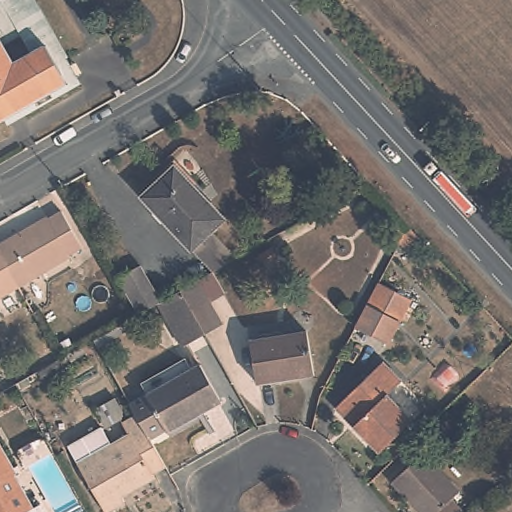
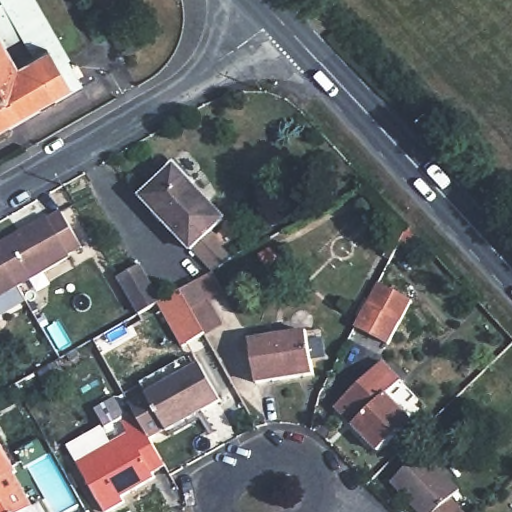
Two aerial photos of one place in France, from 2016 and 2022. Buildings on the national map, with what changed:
unchanged [(0,122),(0,0),(31,0),(79,84),(22,116),(9,124),(6,119),(0,122)]
unchanged [(174,164),(227,219),(190,254),(138,199),(174,164)]
unchanged [(0,243),(46,215),(48,217),(60,211),(81,247),(69,255),(71,257),(18,288),(0,256),(0,243)]
unchanged [(401,247),(413,235),(418,240),(406,252),(401,247)]
unchanged [(0,256),(18,288),(0,299),(0,256)]
unchanged [(156,303),(138,314),(118,278),(138,266),(159,302),(179,290),(203,333),(201,335),(180,346),(156,303)]
unchanged [(212,272),(224,293),(210,300),(223,323),(203,333),(179,290),(212,272)]
unchanged [(379,280),(412,296),(389,341),(357,325),(379,280)]
unchanged [(138,314),(143,321),(97,347),(93,340),(138,314)]
unchanged [(313,375),(256,383),(249,339),(306,330),(313,375)]
unchanged [(141,382),(185,358),(190,368),(198,363),(220,402),(167,433),(165,430),(149,440),(135,415),(128,403),(147,392),(141,382)]
unchanged [(401,380),(387,393),(411,418),(376,452),(333,407),(383,361),(401,380)]
unchanged [(149,440),(164,467),(152,475),(152,478),(121,496),(124,502),(108,512),(105,512),(77,462),(128,433),(121,422),(135,415),(149,440)]
unchanged [(45,512),(0,512),(0,450),(33,507),(40,503),(45,512)]
unchanged [(424,451),(459,490),(451,497),(464,512),(417,512),(390,482),(424,451)]

